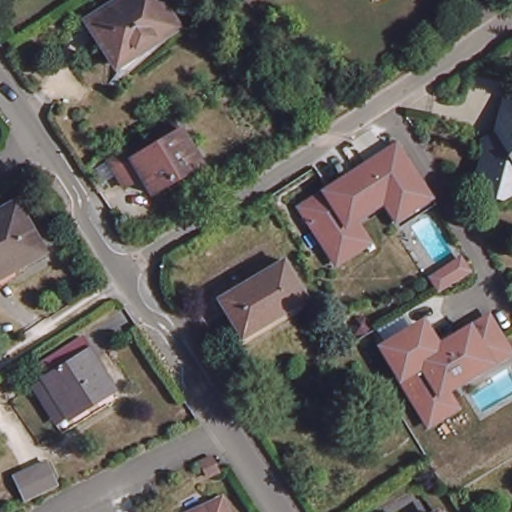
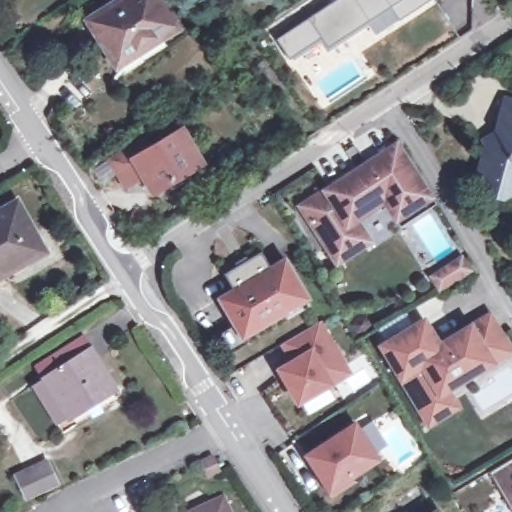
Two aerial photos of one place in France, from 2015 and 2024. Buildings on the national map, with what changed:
unchanged [(140,52),(118,64),(91,22),(126,0),(161,0),(177,25),(138,49),(140,52)]
new [(330,49),(322,39),(291,60),(277,40),(337,0),(432,0),(400,21),(377,36),(369,22),(330,49)]
unchanged [(512,96),(512,190),(504,195),(492,191),(482,173),(483,169),(480,168),(488,141),(485,135),(499,127),(498,126),(506,95),(512,96)]
unchanged [(131,192),(114,165),(133,154),(150,144),(158,157),(169,150),(161,136),(181,124),(209,169),(159,199),(152,189),(139,187),(131,192)]
unchanged [(339,267),(299,205),(323,191),(398,142),(438,201),(397,224),(385,207),(364,222),(376,244),(339,267)]
unchanged [(17,203),(45,252),(0,278),(0,213),(17,203)]
unchanged [(268,332),(265,327),(244,340),(220,300),(287,261),(307,296),(313,305),(268,332)]
unchanged [(380,347),(427,320),(442,342),(493,314),(512,346),(512,358),(455,393),(463,411),(431,432),(380,347)]
new [(293,361),(283,343),(320,322),(350,372),(299,402),(280,370),(293,361)]
unchanged [(51,380),(43,367),(88,337),(121,389),(108,397),(114,406),(69,436),(50,407),(38,388),(51,380)]
new [(355,425),(377,460),(349,478),(352,482),(331,495),(307,456),(355,425)]
unchanged [(210,457),(217,473),(211,476),(206,477),(199,462),(210,457)]
new [(512,459),(512,512),(511,512),(488,473),(512,459)]
unchanged [(45,467),(55,487),(22,502),(12,480),(45,467)]
unchanged [(214,502),(218,512),(190,512),(214,502)]

